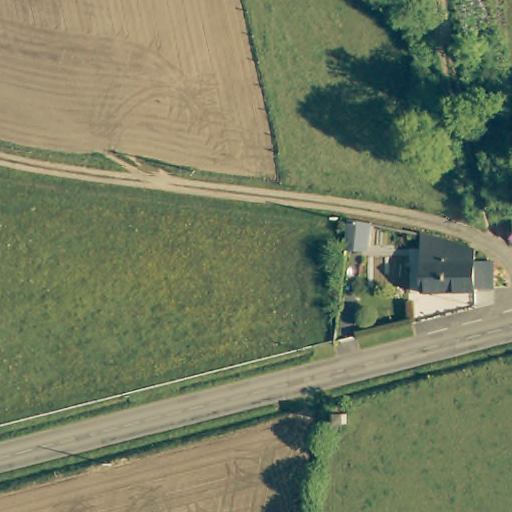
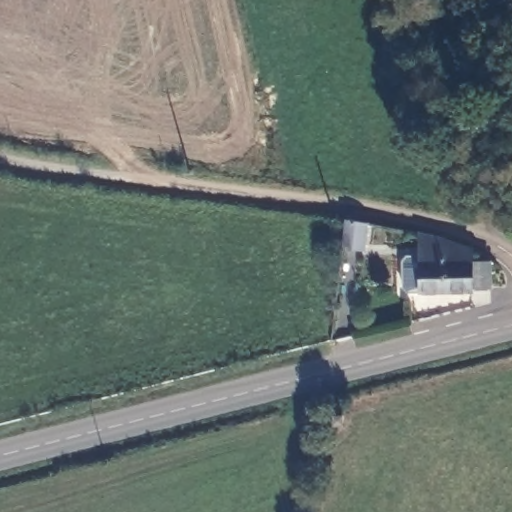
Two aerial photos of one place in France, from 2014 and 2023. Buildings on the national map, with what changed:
unchanged [(351,251),(345,251),(328,248),(332,216),(350,218),(355,219),(351,251)]
unchanged [(416,230),(427,229),(435,234),(450,240),(449,259),(441,259),(441,288),(416,288),(416,230)]
unchanged [(441,259),(449,259),(450,240),(468,244),(468,254),(482,254),(482,261),(490,261),(490,285),(471,285),(471,288),(441,288),(441,259)]

